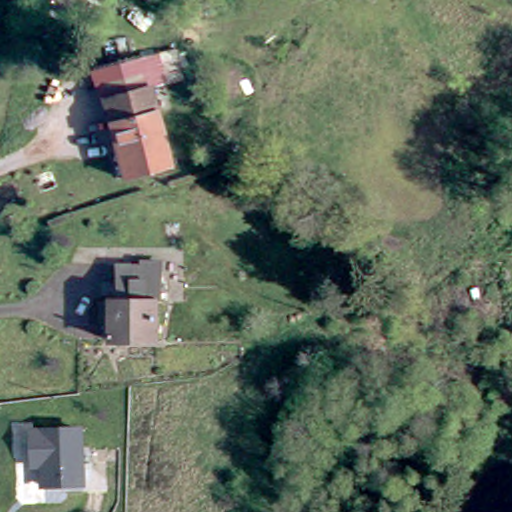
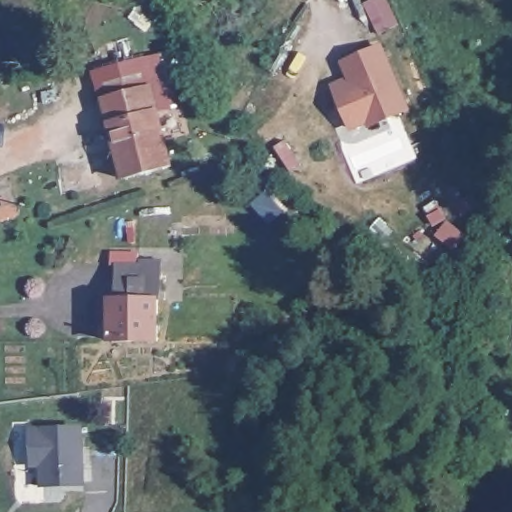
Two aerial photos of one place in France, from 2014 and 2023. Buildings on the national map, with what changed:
new [(380,0),(386,0),(399,27),(384,35),(370,5),(380,0)]
new [(384,44),(411,112),(369,129),(367,126),(350,132),(331,84),(346,78),(340,62),(384,44)]
unchanged [(161,55),(168,85),(151,89),(171,169),(125,181),(98,71),(161,55)]
unchanged [(116,343),(117,317),(113,317),(113,310),(117,310),(118,303),(122,302),(122,269),(144,269),(144,263),(163,263),(163,344),(116,343)]
unchanged [(38,430),(85,430),(88,482),(48,482),(48,463),(48,451),(38,451),(38,430)]

